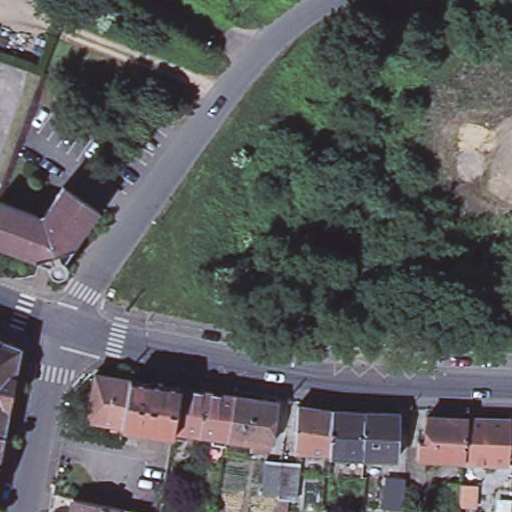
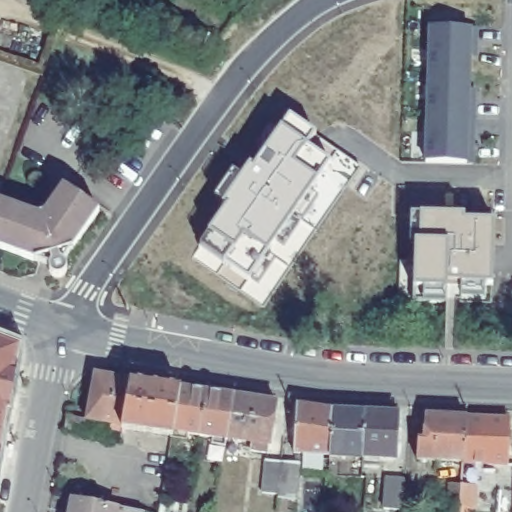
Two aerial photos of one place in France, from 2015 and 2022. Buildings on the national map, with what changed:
new [(475,32),(475,48),(470,49),(470,109),(472,109),(472,139),(468,139),(467,167),(427,167),(431,31),(475,32)]
new [(360,163),(264,305),(192,256),(290,110),(360,163)]
unchanged [(42,211),(65,180),(100,207),(65,256),(65,258),(66,262),(65,265),(64,268),(60,270),(57,270),(55,269),(52,267),(52,266),(50,264),(50,262),(0,244),(0,195),(42,211)]
new [(400,275),(415,275),(417,219),(494,221),(492,307),(460,306),(460,305),(447,305),(447,306),(400,304),(400,275)]
unchanged [(20,345),(0,454),(0,337),(20,345)]
unchanged [(110,433),(111,426),(102,425),(100,438),(65,431),(67,421),(68,418),(87,421),(95,382),(105,378),(130,382),(180,390),(172,435),(172,437),(120,432),(120,434),(110,433)]
unchanged [(177,441),(179,435),(172,435),(180,390),(207,395),(200,438),(184,436),(183,442),(177,441)]
unchanged [(213,446),(214,440),(200,438),(207,395),(234,399),(231,417),(227,440),(227,442),(221,441),(220,447),(213,446)]
unchanged [(227,440),(231,417),(234,399),(278,406),(272,447),(269,446),(269,453),(252,452),(254,444),(227,440)]
unchanged [(295,453),(300,410),(333,412),(330,456),(295,453)]
unchanged [(351,459),(350,465),(336,464),(337,456),(330,456),(333,412),(345,413),(350,410),(358,410),(360,415),(365,415),(362,460),(351,459)]
unchanged [(365,415),(383,415),(385,412),(395,413),(399,417),(397,436),(402,436),(402,445),(397,445),(397,461),(362,460),(365,415)]
unchanged [(419,461),(420,443),(424,444),(427,418),(467,420),(464,463),(419,461)]
unchanged [(509,423),(507,467),(464,466),(464,463),(467,420),(509,423)]
unchanged [(267,477),(270,460),(283,461),(302,463),(297,505),(290,503),(279,502),(280,495),(266,493),(267,477)]
unchanged [(405,481),(403,505),(402,511),(383,510),(385,479),(405,481)]
unchanged [(460,510),(460,505),(447,501),(447,485),(462,486),(462,488),(475,488),(475,510),(460,510)]
unchanged [(66,491),(110,500),(115,500),(139,505),(138,512),(63,512),(63,510),(66,491)]
unchanged [(162,502),(189,508),(188,512),(160,512),(162,502)]

